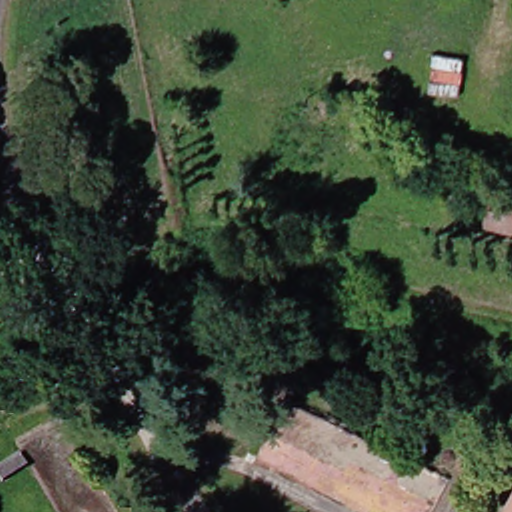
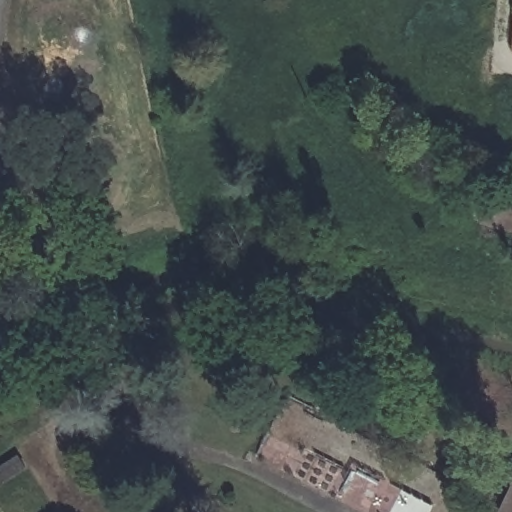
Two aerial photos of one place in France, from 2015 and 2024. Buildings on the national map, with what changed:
unchanged [(507,9),(508,0),(512,0),(512,9),(507,9)]
unchanged [(421,52),(456,55),(451,97),(418,92),(421,52)]
unchanged [(482,182),(512,190),(512,231),(476,222),(482,182)]
unchanged [(494,512),(512,475),(512,512),(494,512)]

